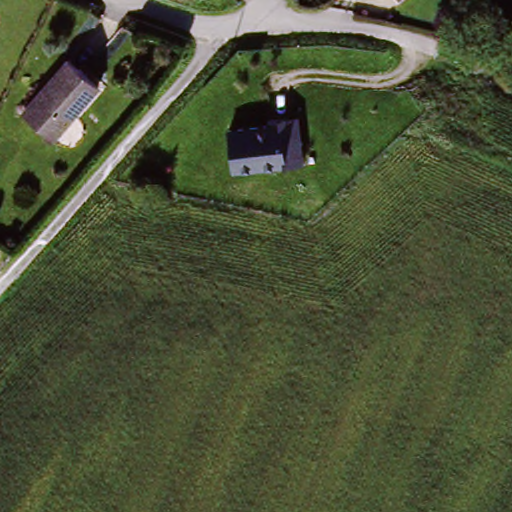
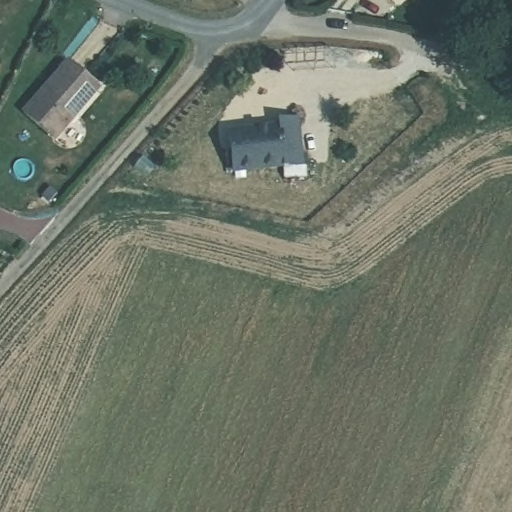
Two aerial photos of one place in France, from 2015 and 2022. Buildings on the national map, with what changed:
unchanged [(25,112),(58,70),(92,98),(73,122),(68,117),(52,135),(25,112)]
unchanged [(285,132),(283,123),(302,121),(307,165),(238,172),(234,132),(271,128),(275,133),(285,132)]

